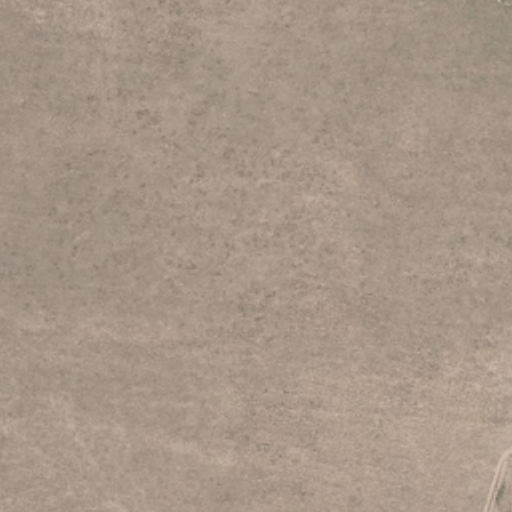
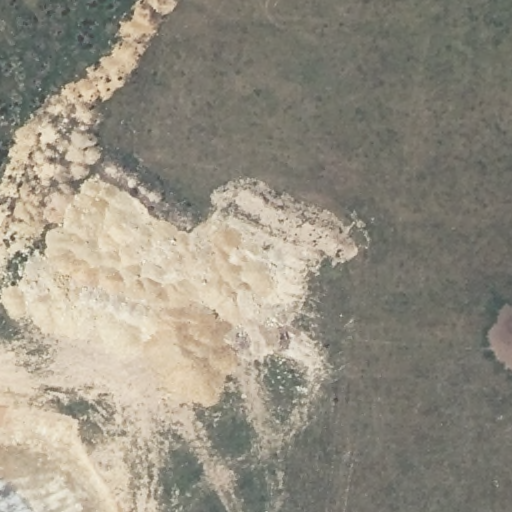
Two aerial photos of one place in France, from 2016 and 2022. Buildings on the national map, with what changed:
[]

